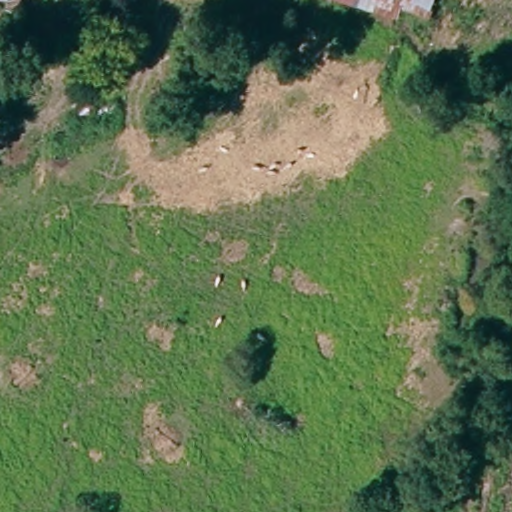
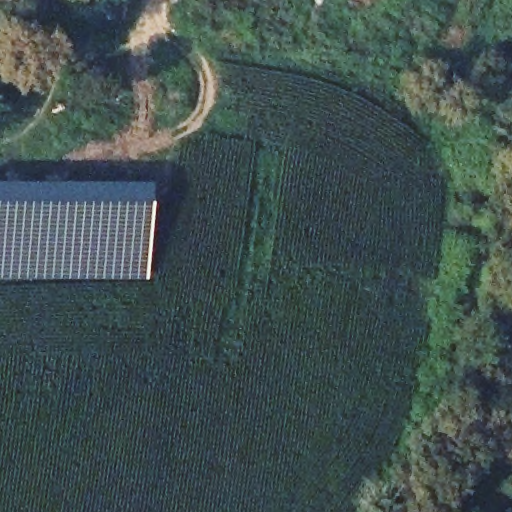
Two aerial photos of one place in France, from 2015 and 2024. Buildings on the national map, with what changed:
unchanged [(381,0),(406,0),(403,9),(381,0)]
new [(144,278),(0,276),(0,178),(146,177),(144,278)]

